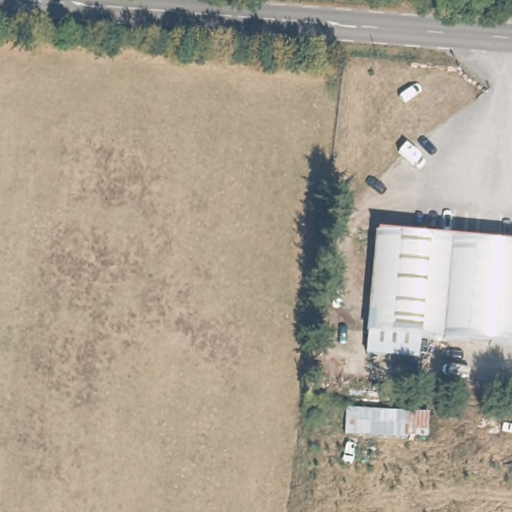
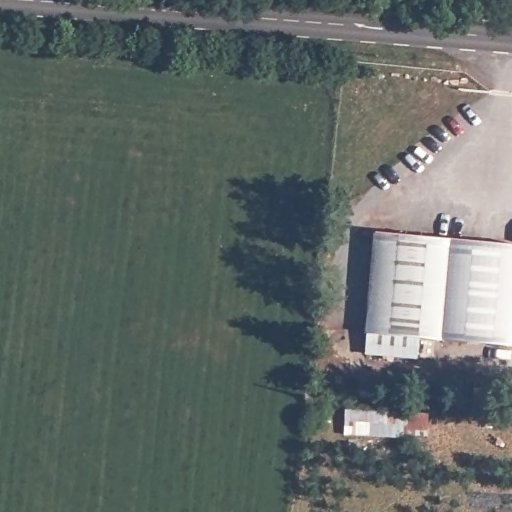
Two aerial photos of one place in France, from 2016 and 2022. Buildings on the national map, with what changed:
unchanged [(425,343),(423,362),(362,357),(361,334),(373,228),(512,239),(512,350),(425,343)]
unchanged [(431,438),(405,437),(407,406),(432,408),(431,438)]

